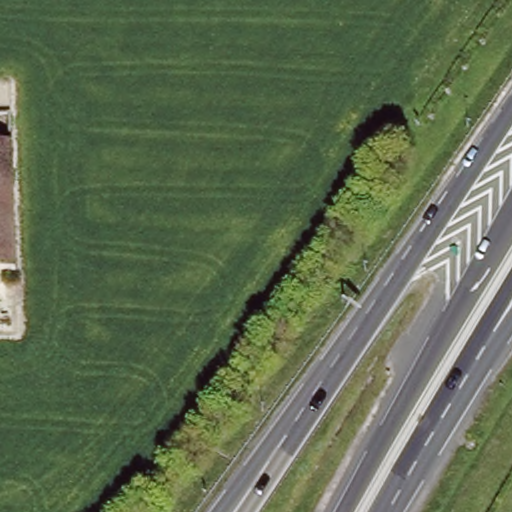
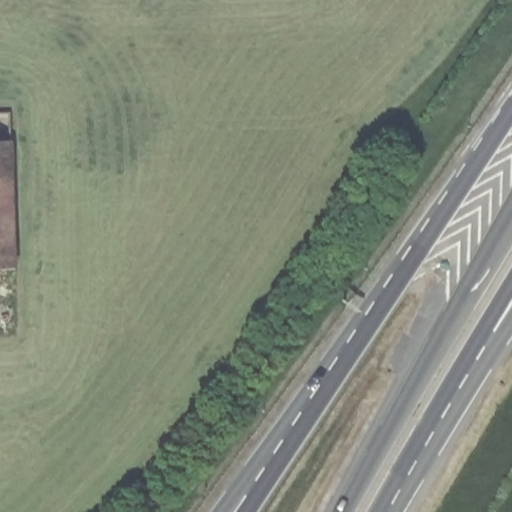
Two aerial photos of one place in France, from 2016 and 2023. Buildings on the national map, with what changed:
unchanged [(16,269),(0,270),(0,112),(10,112),(16,269)]

